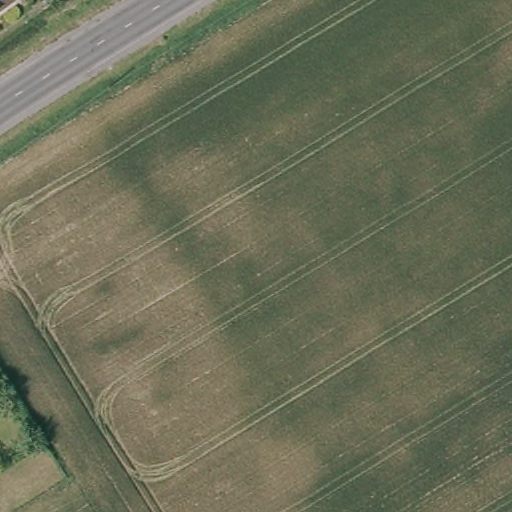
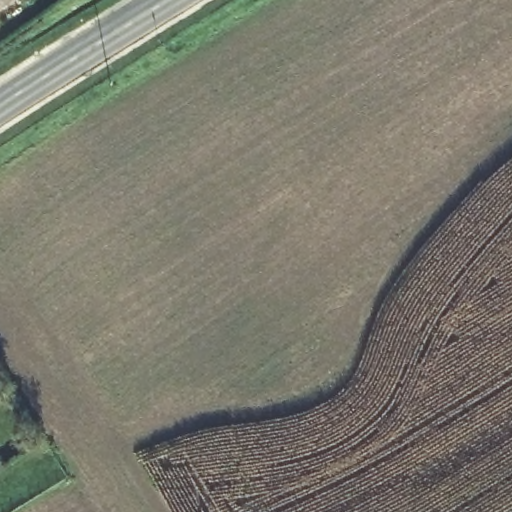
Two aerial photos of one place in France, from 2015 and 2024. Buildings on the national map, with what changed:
unchanged [(0,0),(8,0),(0,7),(0,0)]

